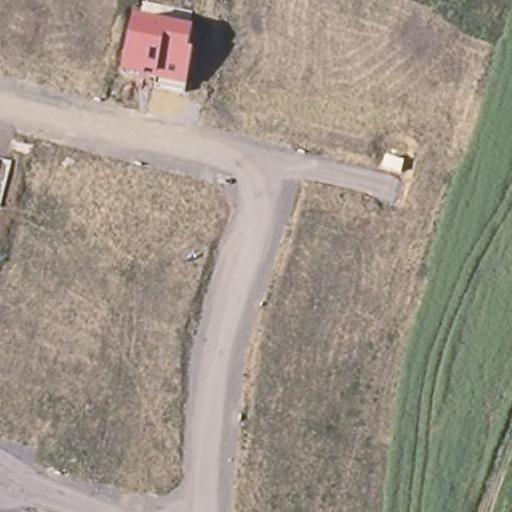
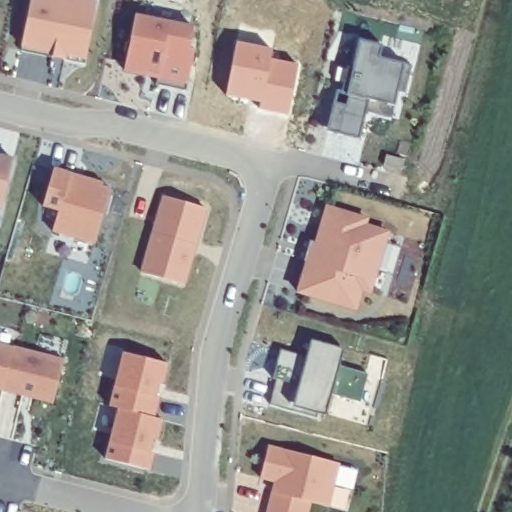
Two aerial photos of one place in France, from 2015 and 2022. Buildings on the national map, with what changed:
new [(28,0),(79,0),(93,3),(80,64),(60,60),(49,57),(17,51),(28,0)]
unchanged [(195,31),(190,53),(193,55),(187,91),(122,77),(135,17),(195,31)]
new [(333,94),(338,95),(340,88),(331,86),(334,72),(343,74),(343,70),(347,71),(355,42),(378,48),(375,60),(408,67),(402,96),(395,95),(388,122),(363,116),(358,137),(357,143),(323,135),(325,129),(333,94)]
new [(270,51),(269,63),(297,68),(290,112),(262,107),(263,102),(228,94),(238,44),(270,51)]
unchanged [(13,155),(0,206),(0,152),(13,155)]
new [(39,209),(50,170),(67,175),(80,179),(100,184),(98,188),(107,190),(91,246),(49,234),(55,213),(39,209)]
new [(207,211),(187,283),(145,271),(165,198),(207,211)]
unchanged [(361,217),(359,224),(382,230),(359,310),(294,291),(303,260),(300,259),(305,240),(312,242),(322,206),(361,217)]
new [(277,378),(274,377),(281,350),(307,354),(312,342),(342,350),(337,366),(367,375),(358,402),(330,390),(322,415),(293,407),(270,403),(277,378)]
new [(10,351),(0,393),(0,348),(10,351)]
unchanged [(10,351),(10,350),(61,362),(50,406),(0,393),(10,351)]
new [(152,417),(117,408),(107,407),(120,357),(164,368),(160,384),(157,397),(152,417)]
new [(148,468),(105,458),(117,408),(152,417),(160,420),(155,439),(152,452),(148,468)]
new [(337,462),(327,505),(309,501),(306,512),(265,512),(271,490),(273,480),(258,477),(266,445),(337,462)]

